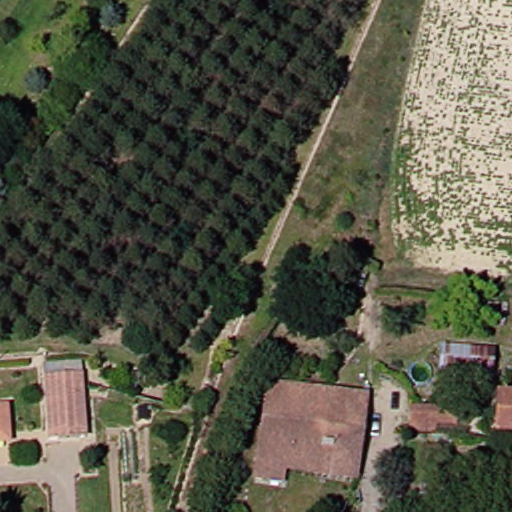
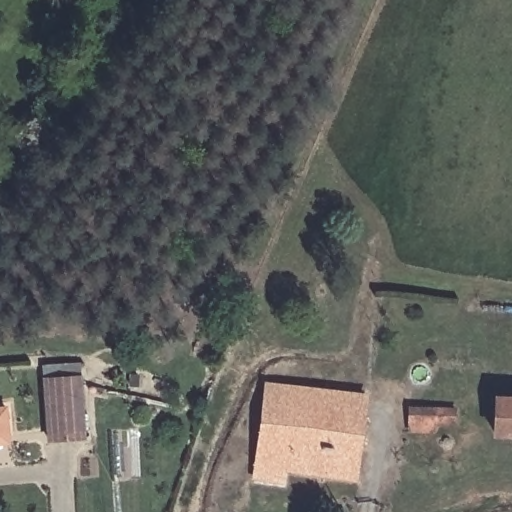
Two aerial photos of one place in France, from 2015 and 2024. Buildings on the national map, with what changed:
unchanged [(479,372),(428,369),(429,346),(481,350),(479,372)]
unchanged [(66,364),(74,427),(39,431),(31,368),(66,364)]
unchanged [(337,398),(323,476),(271,466),(269,480),(248,476),(261,384),(289,389),(291,374),(339,384),(337,398)]
unchanged [(337,398),(355,402),(340,479),(323,476),(337,398)]
unchanged [(487,399),(512,399),(512,431),(487,431),(487,399)]
unchanged [(455,419),(454,433),(437,432),(436,441),(413,440),(414,416),(455,419)]

